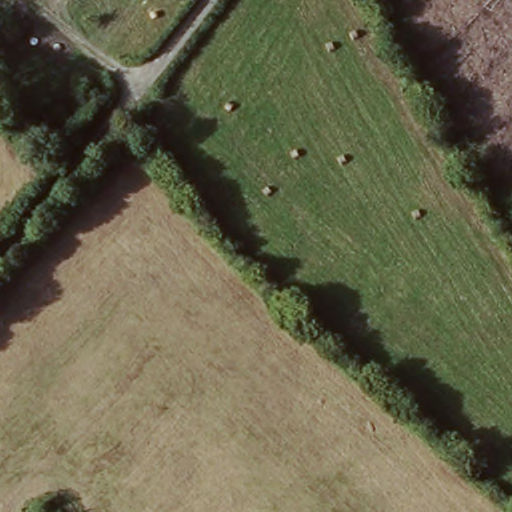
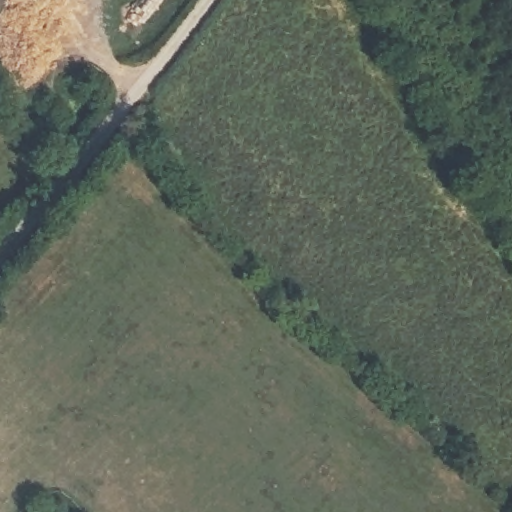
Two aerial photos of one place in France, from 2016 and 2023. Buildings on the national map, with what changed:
[]

